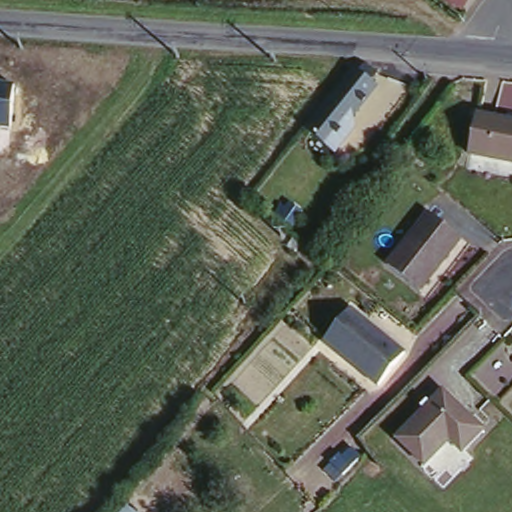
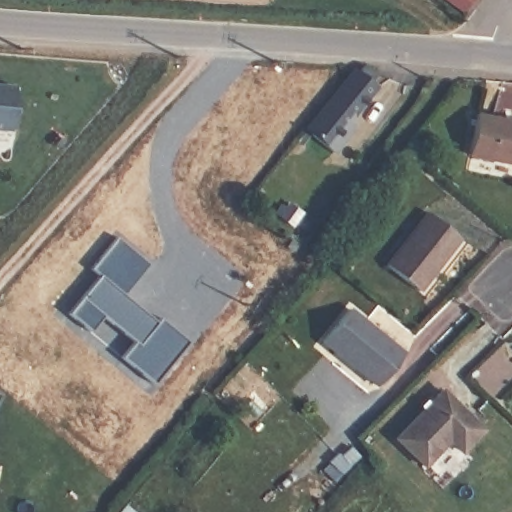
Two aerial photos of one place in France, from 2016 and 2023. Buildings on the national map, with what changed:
unchanged [(460,9),(448,0),(467,0),(460,9)]
unchanged [(352,74),(357,68),(361,68),(371,76),(366,83),(371,87),(349,117),(351,128),(333,153),(304,132),(349,71),(352,74)]
unchanged [(8,126),(0,126),(0,80),(13,82),(8,126)]
unchanged [(512,123),(512,166),(464,154),(472,114),(512,123)]
unchanged [(463,240),(423,293),(391,269),(431,215),(463,240)]
new [(156,382),(128,360),(141,343),(105,315),(93,330),(73,314),(101,277),(94,271),(115,243),(144,265),(123,293),(187,342),(156,382)]
unchanged [(392,342),(366,375),(328,345),(354,312),(392,342)]
unchanged [(485,426),(469,444),(455,431),(426,462),(398,435),(420,414),(415,409),(429,396),(433,400),(445,388),(485,426)]

